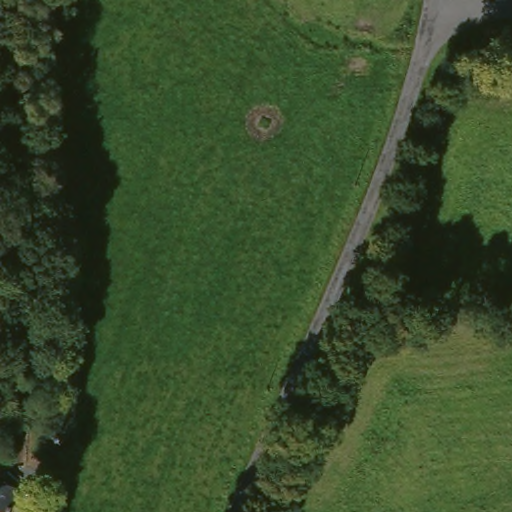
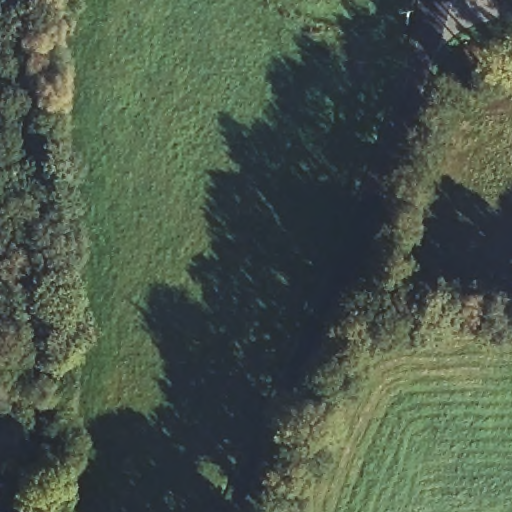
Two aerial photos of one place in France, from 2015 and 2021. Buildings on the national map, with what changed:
unchanged [(16,492),(10,512),(0,512),(0,488),(2,489),(16,492)]

